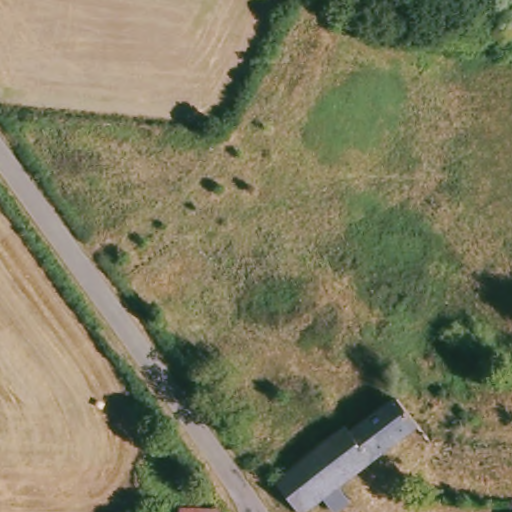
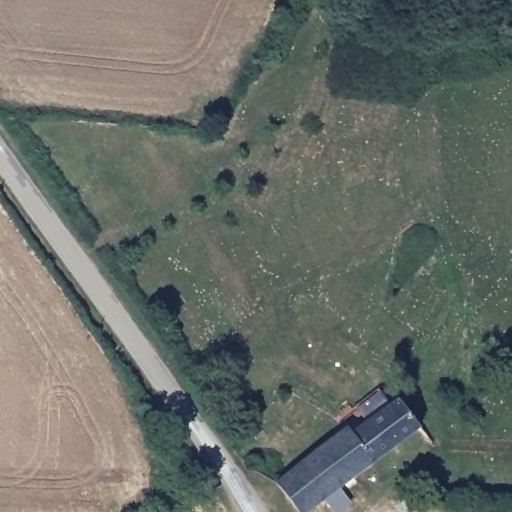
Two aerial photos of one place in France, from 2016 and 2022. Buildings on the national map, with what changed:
unchanged [(396,392),(417,419),(362,460),(362,458),(342,432),(396,392)]
unchanged [(338,427),(342,432),(362,458),(362,460),(302,504),(277,471),(338,427)]
unchanged [(175,508),(222,505),(223,512),(175,512),(175,508)]

